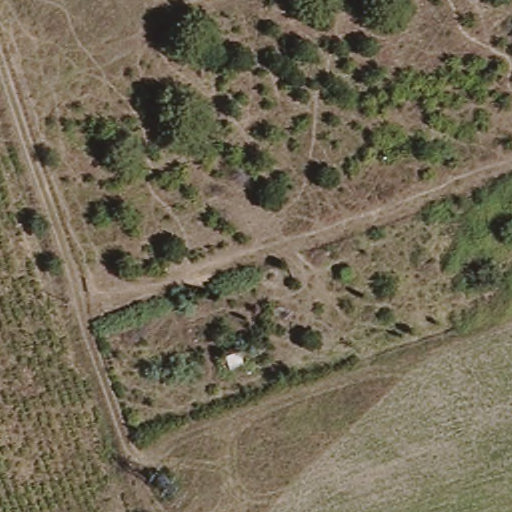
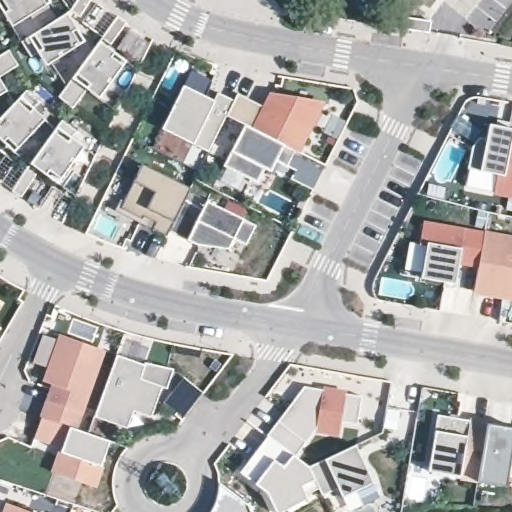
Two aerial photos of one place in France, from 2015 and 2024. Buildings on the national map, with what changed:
new [(43,0),(45,4),(16,23),(8,10),(0,15),(0,0),(43,0)]
new [(77,0),(89,0),(78,16),(70,11),(77,0)]
new [(61,16),(80,44),(50,63),(42,49),(31,57),(21,42),(61,16)]
new [(102,37),(113,21),(117,16),(125,22),(121,28),(110,43),(102,37)]
new [(96,45),(123,65),(102,93),(90,84),(72,108),(58,97),(96,45)]
new [(8,50),(18,65),(0,77),(0,55),(8,50)]
new [(182,86),(213,101),(217,93),(233,101),(226,116),(208,153),(161,129),(182,86)]
new [(26,90),(39,103),(30,114),(40,124),(17,149),(0,132),(0,118),(26,90)]
new [(1,94),(0,95),(0,92),(1,94)]
new [(233,101),(237,94),(265,108),(270,95),(320,104),(296,151),(295,150),(245,125),(226,116),(233,101)]
new [(61,121),(76,131),(67,143),(80,151),(60,179),(33,159),(61,121)]
new [(512,129),(512,195),(494,192),(497,173),(468,167),(477,121),(512,129)]
new [(270,172),(265,169),(257,183),(223,166),(245,125),(295,150),(286,167),(280,163),(274,174),(270,172)]
new [(141,165),(190,189),(166,237),(152,230),(155,224),(143,218),(141,220),(120,209),(141,165)]
new [(26,169),(35,174),(25,190),(20,197),(12,191),(16,185),(26,169)]
new [(202,209),(208,200),(257,225),(247,243),(232,237),(227,247),(204,235),(200,244),(188,237),(186,240),(168,232),(184,201),(202,209)]
new [(473,269),(458,264),(453,285),(420,279),(422,273),(405,270),(408,243),(420,245),(423,221),(480,233),(473,269)]
unchanged [(480,233),(512,237),(512,303),(468,297),(480,233)]
new [(103,464),(96,489),(48,473),(55,449),(60,451),(64,444),(37,437),(55,384),(47,380),(61,334),(103,349),(75,429),(108,441),(103,464)]
new [(115,359),(142,369),(143,367),(172,374),(165,393),(160,391),(150,422),(132,415),(125,432),(93,421),(115,359)]
new [(281,418),(285,420),(291,412),(287,409),(304,387),(362,396),(357,424),(341,422),(339,434),(315,430),(295,457),(267,436),(281,418)]
new [(481,423),(481,430),(470,482),(452,476),(421,469),(429,432),(432,417),(481,423)]
new [(506,488),(470,482),(481,430),(481,423),(512,428),(512,479),(508,478),(506,488)]
new [(308,467),(318,488),(305,494),(307,499),(279,512),(275,512),(267,493),(255,484),(260,478),(245,466),(268,436),(308,467)]
new [(355,446),(373,483),(342,497),(338,488),(322,496),(308,467),(355,446)]
new [(216,502),(219,483),(248,505),(251,512),(210,512),(216,502)]
new [(8,504),(30,512),(6,512),(8,504)]

